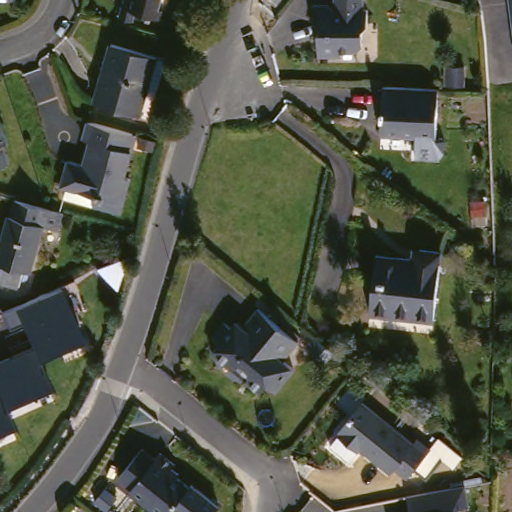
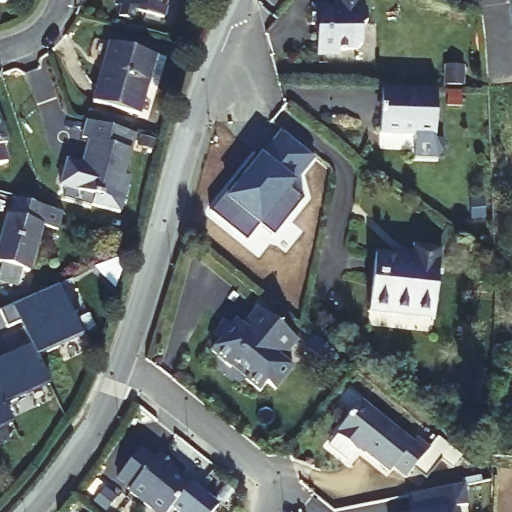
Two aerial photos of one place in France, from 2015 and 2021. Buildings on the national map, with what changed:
unchanged [(174,17),(126,5),(126,0),(179,0),(174,17)]
unchanged [(359,24),(352,24),(353,47),(336,48),(337,57),(315,57),(314,30),(301,31),(300,8),(330,6),(330,0),(358,0),(359,24)]
unchanged [(107,42),(153,54),(137,113),(91,100),(107,42)]
unchanged [(421,81),(421,96),(443,97),(440,140),(423,139),(423,132),(385,129),(388,79),(421,81)]
unchanged [(7,148),(12,164),(0,168),(0,103),(14,146),(7,148)]
unchanged [(145,134),(132,171),(140,174),(127,212),(75,196),(79,186),(69,183),(76,159),(89,162),(94,141),(89,139),(96,119),(117,126),(121,127),(145,134)]
new [(257,151),(262,154),(282,129),(315,156),(291,186),(305,197),(275,235),(261,223),(247,239),(210,210),(257,151)]
unchanged [(27,203),(56,212),(67,216),(81,220),(77,233),(62,229),(48,275),(39,272),(33,291),(10,284),(16,264),(9,262),(27,203)]
unchanged [(426,256),(427,245),(446,247),(440,313),(377,307),(383,252),(426,256)]
unchanged [(52,385),(6,405),(14,423),(0,429),(0,354),(30,343),(22,322),(7,329),(0,309),(0,307),(61,284),(65,290),(82,336),(42,354),(52,385)]
unchanged [(297,340),(281,359),(292,368),(273,389),(266,383),(258,391),(245,379),(251,371),(236,358),(230,366),(211,350),(217,342),(210,336),(220,324),(236,337),(241,331),(239,329),(257,307),(297,340)]
unchanged [(342,445),(351,434),(353,431),(351,429),(375,400),(425,441),(429,437),(442,448),(419,477),(407,467),(403,471),(372,447),(370,450),(369,449),(361,460),(342,445)]
unchanged [(160,452),(174,464),(171,468),(177,473),(175,476),(187,487),(165,512),(154,512),(127,488),(130,486),(117,475),(141,446),(154,458),(160,452)]
unchanged [(473,505),(463,507),(465,512),(424,512),(420,495),(468,483),(473,505)]

